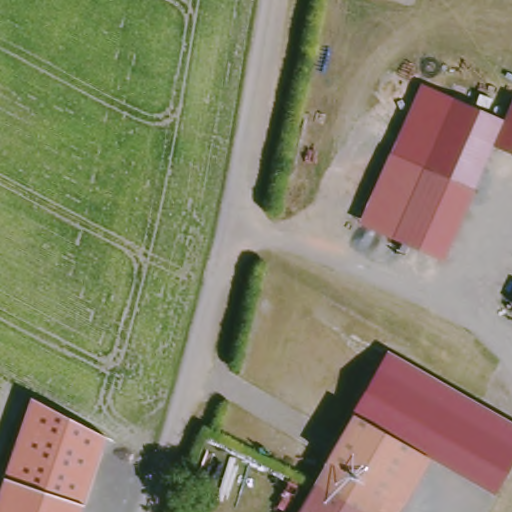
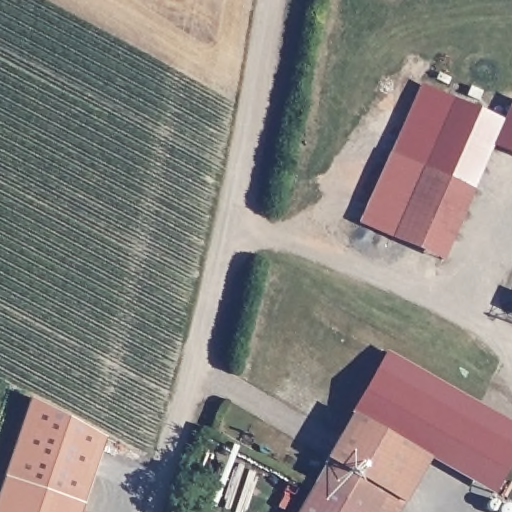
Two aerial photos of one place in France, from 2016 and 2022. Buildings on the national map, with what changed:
unchanged [(440,260),(360,225),(390,156),(430,63),(511,98),(512,94),(512,126),(501,121),(470,191),(440,260)]
unchanged [(427,455),(392,512),(292,512),(390,349),(512,416),(512,450),(493,489),(427,455)]
unchanged [(4,477),(31,397),(107,437),(84,506),(82,512),(0,512),(0,488),(4,477)]

